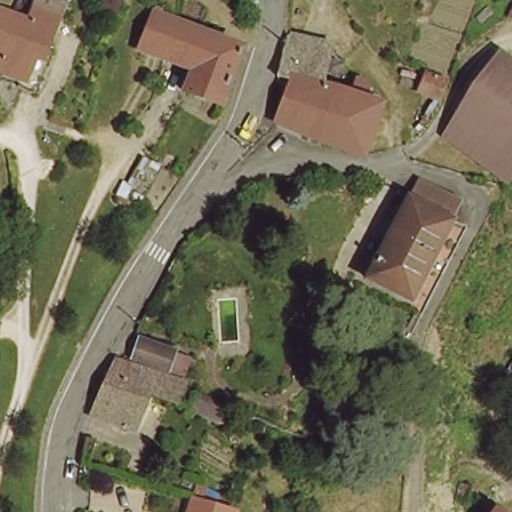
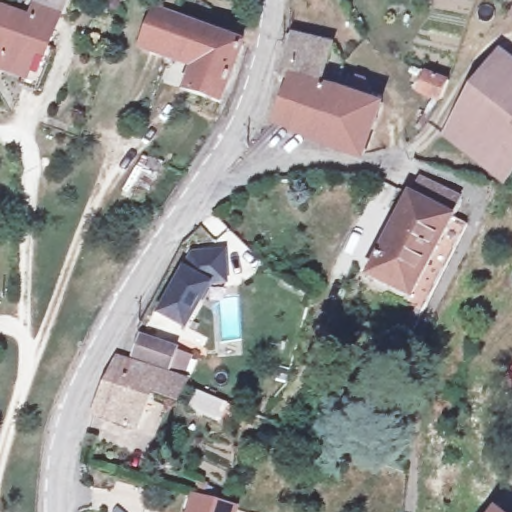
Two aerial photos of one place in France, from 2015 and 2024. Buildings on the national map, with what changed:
unchanged [(64,0),(49,46),(56,49),(43,89),(21,82),(25,69),(0,61),(0,14),(3,5),(35,16),(39,0),(64,0)]
unchanged [(248,47),(230,102),(193,91),(200,69),(171,58),(144,48),(155,10),(186,21),(242,40),(248,47)]
unchanged [(292,37),(335,50),(323,86),(320,85),(320,87),(302,81),(301,84),(280,77),(292,37)]
unchanged [(450,131),(477,91),(511,54),(512,54),(512,163),(503,172),(460,139),(450,131)]
unchanged [(287,125),(288,121),(299,86),(280,79),(280,77),(301,84),(302,81),(320,87),(320,85),(323,86),(340,91),(323,142),(287,125)]
unchanged [(455,85),(447,103),(425,96),(432,77),(455,85)]
unchanged [(323,142),(340,91),(361,97),(366,83),(372,86),(371,87),(377,89),(375,95),(382,97),(380,103),(387,105),(370,156),(323,142)]
unchanged [(130,200),(147,158),(166,165),(150,207),(130,200)]
unchanged [(420,296),(374,277),(422,178),(468,197),(420,296)]
new [(210,287),(187,331),(155,313),(182,266),(190,253),(225,249),(228,286),(210,287)]
unchanged [(180,352),(171,371),(137,357),(146,337),(180,352)]
unchanged [(120,356),(165,374),(165,375),(188,385),(180,404),(151,392),(135,428),(95,410),(120,356)]
new [(512,363),(512,383),(503,377),(512,363)]
unchanged [(225,423),(196,412),(202,395),(231,405),(225,423)]
unchanged [(192,498),(235,505),(234,512),(189,512),(192,498)]
unchanged [(505,512),(491,512),(496,505),(505,512)]

